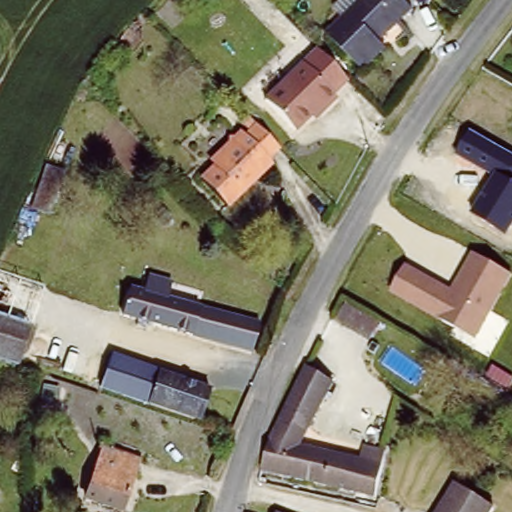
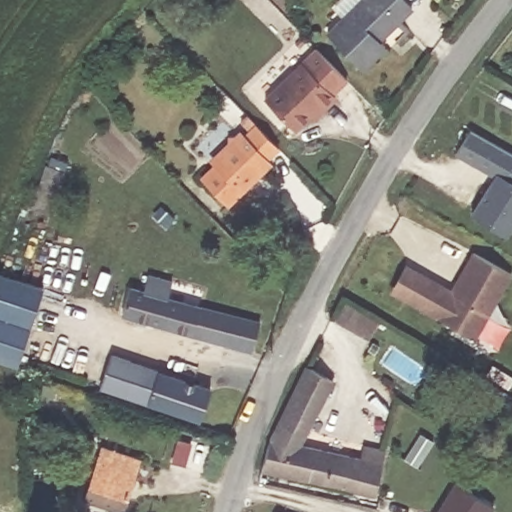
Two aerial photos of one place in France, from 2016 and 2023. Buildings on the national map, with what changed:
unchanged [(364,0),(406,0),(415,9),(381,42),(390,50),(368,72),(330,34),(364,0)]
unchanged [(319,50),(350,82),(337,96),(341,101),(326,115),(322,110),(298,133),(267,101),(319,50)]
unchanged [(247,132),(258,122),(283,149),(272,159),(277,164),(232,207),(203,177),(215,165),(214,156),(230,141),(231,131),(247,132)]
unchanged [(492,174),(457,154),(470,131),(512,155),(512,227),(507,236),(470,214),(492,174)]
unchanged [(62,186),(54,207),(37,201),(46,179),(62,186)]
unchanged [(512,277),(475,338),(390,293),(406,264),(452,287),(472,251),(512,273),(512,277)]
new [(44,286),(17,365),(0,359),(0,271),(44,286)]
unchanged [(254,352),(242,348),(101,310),(109,283),(134,290),(137,278),(155,283),(152,296),(249,322),(262,325),(254,352)]
unchanged [(492,354),(487,362),(476,356),(481,347),(492,354)]
unchanged [(102,382),(112,351),(160,367),(149,398),(102,382)]
unchanged [(214,386),(203,417),(201,416),(149,398),(160,367),(214,386)]
unchanged [(381,455),(380,462),(379,467),(372,500),(260,475),(269,447),(272,439),(307,369),(334,382),(302,448),(354,461),(357,448),(381,455)]
unchanged [(142,460),(126,505),(90,492),(105,447),(142,460)]
unchanged [(494,500),(487,512),(435,512),(455,477),(494,500)]
unchanged [(270,512),(271,511),(275,512),(270,512)]

